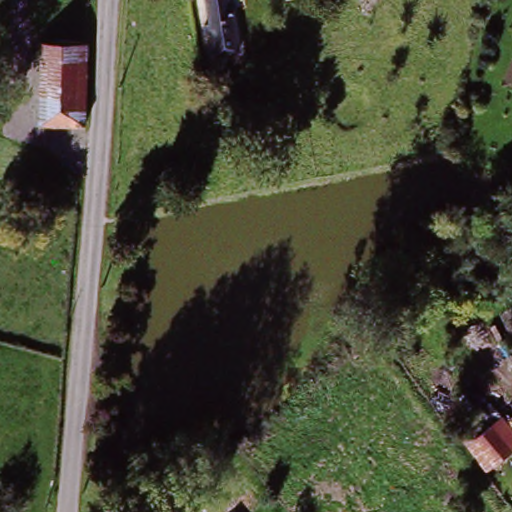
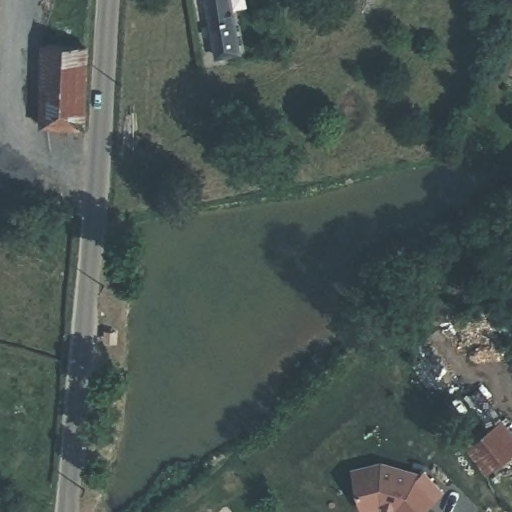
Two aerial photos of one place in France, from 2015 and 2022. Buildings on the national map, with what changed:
unchanged [(202,30),(216,27),(210,0),(231,0),(241,52),(220,56),(209,59),(202,30)]
new [(287,3),(286,0),(300,0),(287,3)]
unchanged [(44,125),(43,62),(44,48),(78,47),(82,48),(83,61),(82,125),(44,125)]
unchanged [(461,443),(482,426),(487,432),(501,420),(507,428),(512,435),(512,450),(495,465),(483,474),(465,449),(461,443)]
new [(414,468),(417,471),(421,470),(437,499),(413,512),(404,512),(397,501),(386,498),(371,506),(351,471),(376,457),(414,468)]

